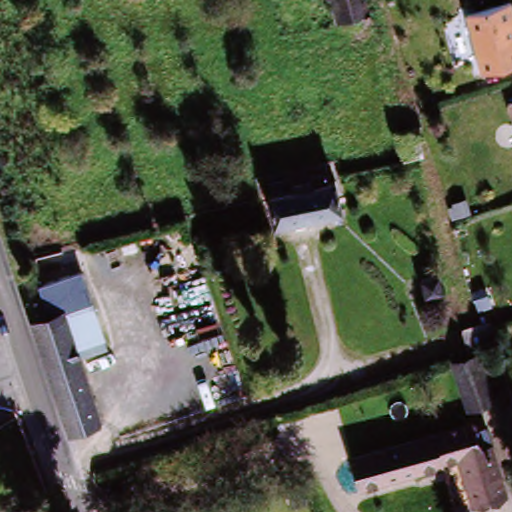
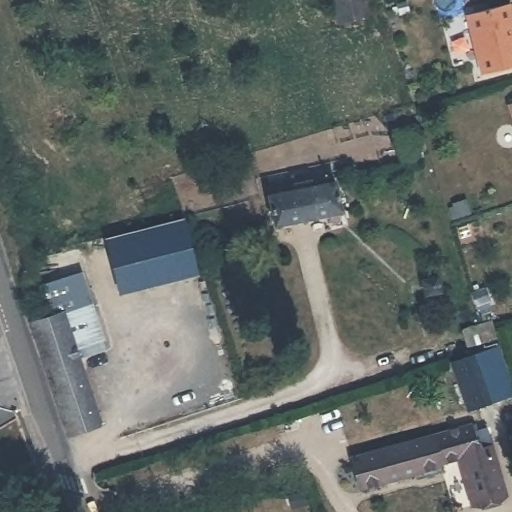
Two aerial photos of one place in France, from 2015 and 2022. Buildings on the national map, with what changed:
unchanged [(336,30),(330,0),(362,0),(367,24),(336,30)]
unchanged [(512,15),(512,66),(481,74),(466,15),(509,3),(512,15)]
unchanged [(406,163),(397,135),(412,131),(421,159),(406,163)]
unchanged [(266,193),(334,178),(342,219),(275,234),(266,193)]
new [(183,220),(197,273),(121,294),(107,241),(183,220)]
unchanged [(431,262),(440,293),(423,296),(416,266),(431,262)]
unchanged [(90,298),(61,308),(45,314),(35,286),(80,269),(90,298)]
unchanged [(105,340),(76,351),(61,308),(90,298),(105,340)]
unchanged [(27,321),(45,314),(61,308),(76,351),(100,417),(66,427),(27,321)]
unchanged [(477,361),(491,403),(467,411),(453,369),(477,361)]
unchanged [(362,494),(350,455),(463,420),(471,442),(472,446),(442,456),(445,469),(362,494)]
unchanged [(442,456),(472,446),(471,442),(480,440),(482,451),(490,448),(507,508),(495,512),(473,512),(458,462),(445,469),(442,456)]

